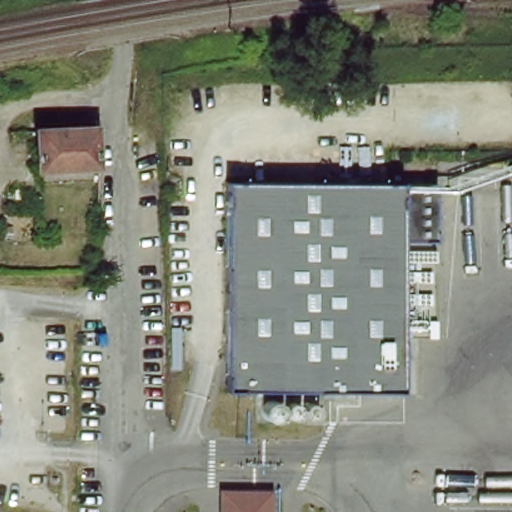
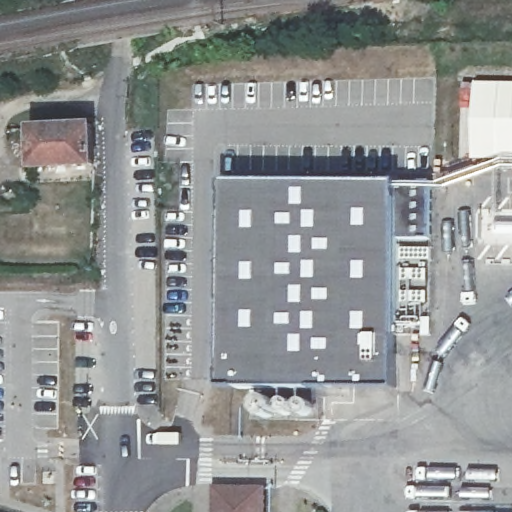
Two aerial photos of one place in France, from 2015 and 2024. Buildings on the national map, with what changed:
new [(474,164),(476,84),(512,84),(512,163),(474,164)]
unchanged [(33,166),(32,126),(90,124),(91,163),(33,166)]
unchanged [(436,188),(435,251),(400,250),(398,395),(221,393),(224,185),(436,188)]
unchanged [(211,512),(211,489),(266,486),(266,512),(211,512)]

